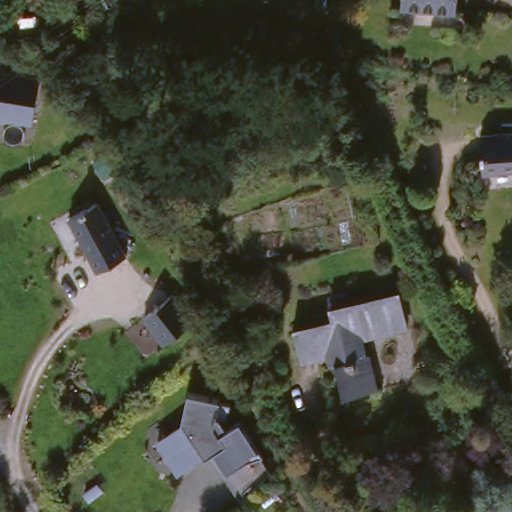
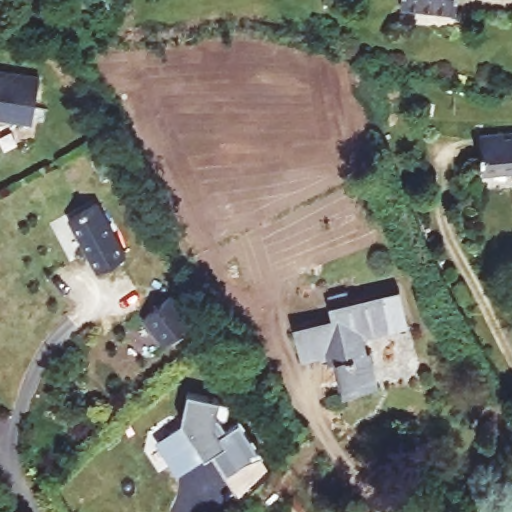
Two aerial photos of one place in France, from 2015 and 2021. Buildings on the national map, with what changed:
unchanged [(398,0),(455,0),(453,12),(398,4),(398,0)]
unchanged [(40,75),(33,119),(0,114),(0,68),(40,75)]
unchanged [(481,170),(479,137),(512,135),(512,177),(511,169),(481,170)]
unchanged [(106,197),(133,250),(101,266),(74,212),(106,197)]
unchanged [(330,355),(304,361),(296,328),(335,320),(332,305),(398,290),(407,327),(368,336),(379,392),(343,401),(330,355)]
unchanged [(173,291),(196,315),(170,339),(147,315),(173,291)]
unchanged [(237,465),(226,450),(204,467),(197,457),(184,467),(169,448),(189,433),(191,435),(196,431),(191,425),(196,392),(219,395),(219,398),(231,400),(229,416),(217,415),(216,418),(223,419),(228,426),(242,415),(263,444),(237,465)]

